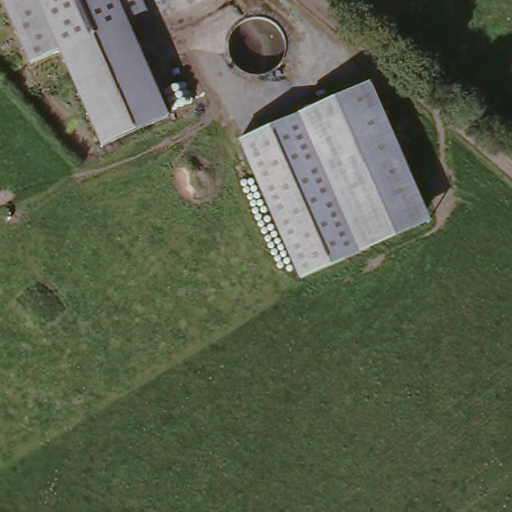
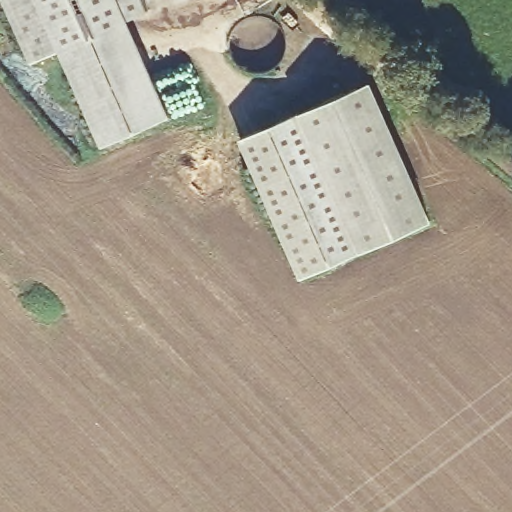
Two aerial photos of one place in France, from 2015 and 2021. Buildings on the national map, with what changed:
unchanged [(99,147),(58,50),(29,64),(0,0),(142,0),(148,12),(126,22),(166,118),(99,147)]
unchanged [(234,139),(366,78),(429,217),(296,280),(234,139)]

